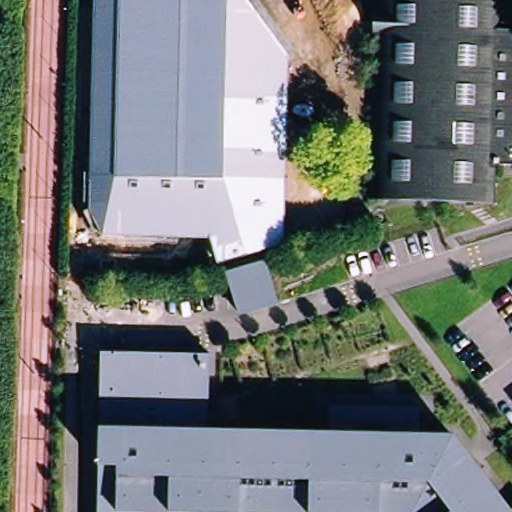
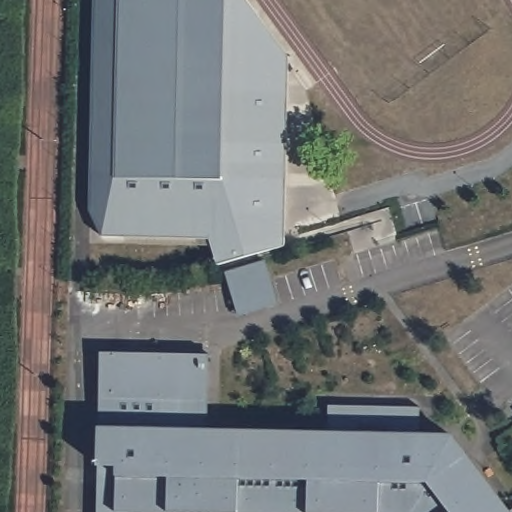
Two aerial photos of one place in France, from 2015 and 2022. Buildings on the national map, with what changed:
unchanged [(284,244),(218,263),(210,236),(105,235),(89,209),(93,0),(247,0),(289,56),(284,244)]
demolished [(366,0),(498,0),(497,30),(512,30),(512,166),(494,165),(493,206),(431,204),(426,204),(364,201),(360,202),(366,0)]
unchanged [(266,263),(280,307),(240,319),(226,275),(266,263)]
unchanged [(103,357),(212,360),(209,433),(324,435),(327,410),(423,413),(421,438),(455,439),(506,512),(101,512),(103,357)]

